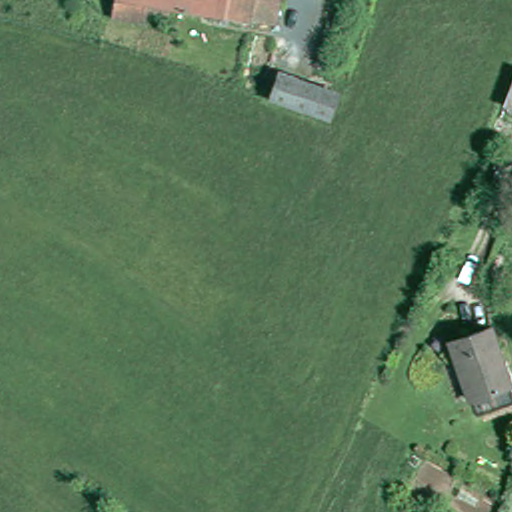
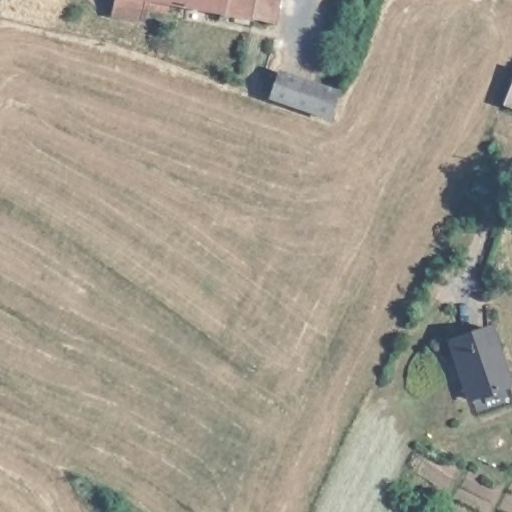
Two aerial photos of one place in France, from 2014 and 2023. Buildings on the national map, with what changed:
unchanged [(114,0),(155,0),(150,17),(112,9),(114,0)]
unchanged [(266,18),(253,15),(176,0),(273,0),(266,18)]
unchanged [(272,99),(283,74),(338,96),(327,120),(272,99)]
unchanged [(512,83),(512,100),(506,95),(512,83)]
unchanged [(509,377),(472,392),(458,355),(454,357),(447,338),(490,323),(509,377)]

